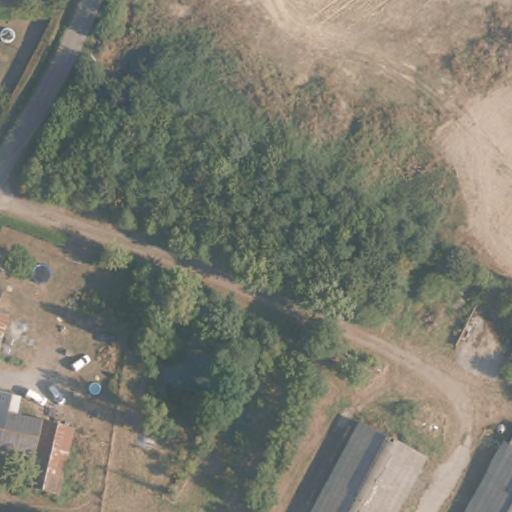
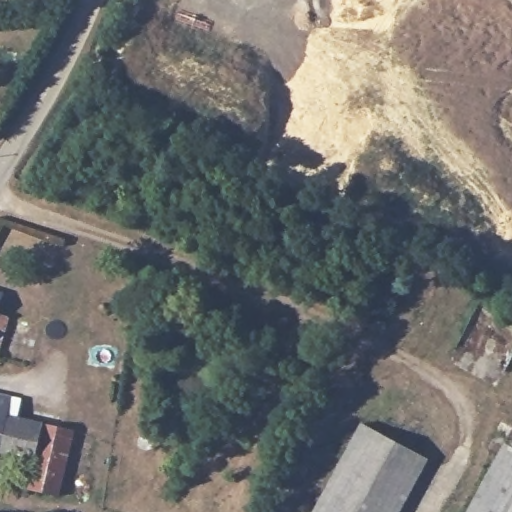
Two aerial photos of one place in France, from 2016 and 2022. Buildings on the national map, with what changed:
unchanged [(11,323),(10,328),(2,356),(0,355),(0,320),(11,323)]
unchanged [(8,401),(4,419),(36,425),(28,458),(0,453),(0,399),(8,401)]
unchanged [(67,432),(51,500),(21,493),(28,458),(36,425),(67,432)]
unchanged [(425,462),(397,512),(314,512),(361,427),(425,462)]
unchanged [(512,449),(512,512),(469,512),(507,446),(512,449)]

